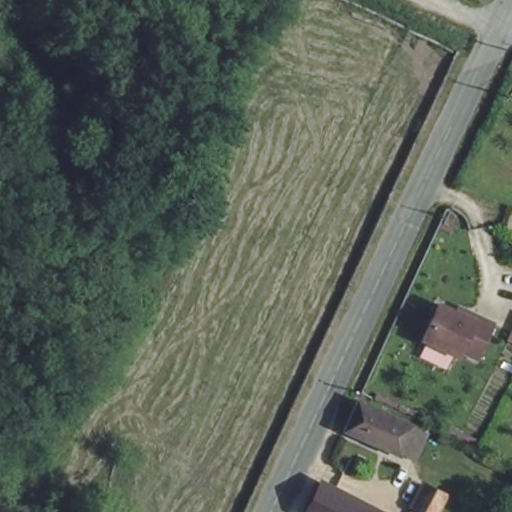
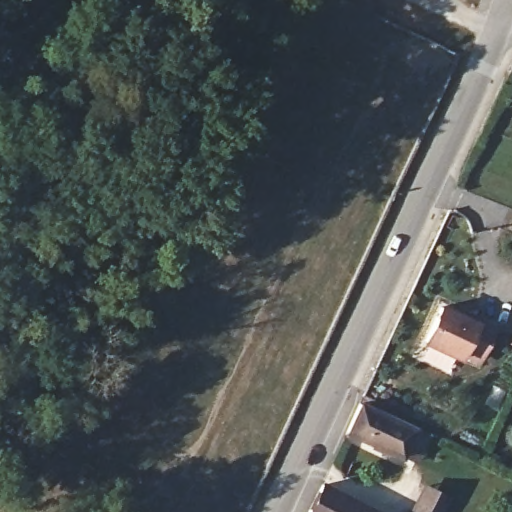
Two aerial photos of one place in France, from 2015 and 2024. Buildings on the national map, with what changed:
unchanged [(478,357),(462,349),(460,353),(425,337),(442,303),(460,312),(462,307),(478,315),(495,323),(478,357)]
unchanged [(410,463),(393,456),(343,432),(356,405),(405,428),(422,437),(410,463)]
unchanged [(391,512),(321,512),(334,483),(391,512)]

